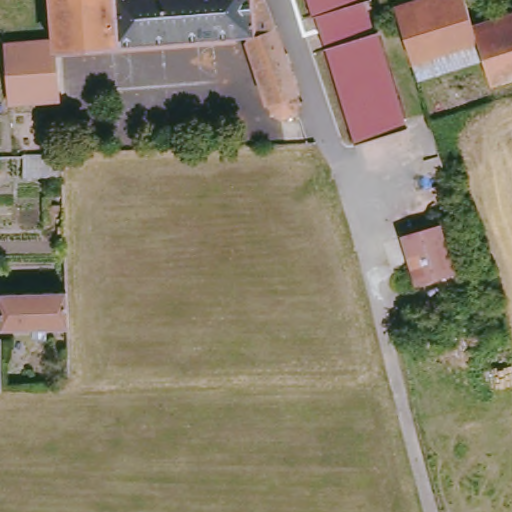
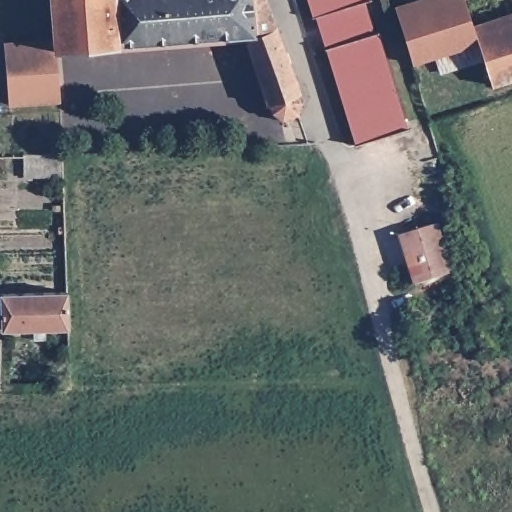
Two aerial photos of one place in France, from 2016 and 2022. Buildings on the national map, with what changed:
unchanged [(250,38),(57,50),(54,0),(266,0),(279,32),(250,38)]
unchanged [(405,125),(355,141),(350,122),(352,121),(346,101),(344,102),(338,83),(340,82),(334,62),(332,63),(325,44),(328,43),(319,13),(312,15),(308,0),(363,0),(372,29),(375,28),(405,125)]
unchanged [(415,66),(399,12),(395,0),(411,0),(413,7),(434,0),(465,0),(474,27),(489,22),(490,27),(512,20),(512,80),(492,87),(485,62),(475,65),(470,49),(415,66)]
unchanged [(315,130),(294,137),(287,124),(287,119),(276,117),(275,120),(272,117),(274,114),(270,111),(267,111),(246,44),(250,38),(279,32),(287,55),(290,54),(295,65),(292,66),(304,96),(302,97),(304,105),(307,104),(315,130)]
unchanged [(51,37),(51,39),(51,42),(52,54),(55,101),(10,104),(5,42),(51,37)]
unchanged [(64,156),(67,181),(25,183),(22,157),(64,156)]
unchanged [(415,284),(400,237),(437,226),(452,272),(415,284)]
unchanged [(0,333),(0,297),(61,295),(62,332),(0,333)]
unchanged [(2,343),(2,387),(0,387),(0,344),(2,343)]
unchanged [(60,383),(60,373),(70,373),(70,383),(60,383)]

